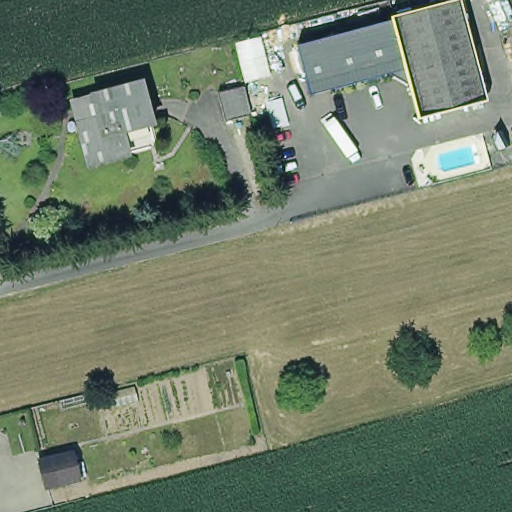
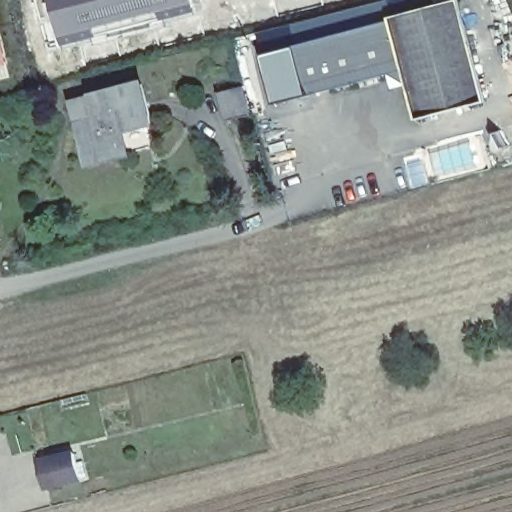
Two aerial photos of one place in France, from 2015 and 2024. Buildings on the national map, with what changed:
new [(198,9),(97,38),(63,45),(49,13),(45,0),(196,0),(198,9)]
unchanged [(411,65),(398,15),(456,0),(462,0),(488,95),(424,112),(411,65)]
unchanged [(411,65),(314,91),(300,41),(398,15),(411,65)]
new [(9,65),(0,67),(0,30),(9,65)]
unchanged [(144,86),(154,125),(124,133),(130,155),(87,164),(73,104),(144,86)]
unchanged [(243,92),(251,120),(225,126),(219,97),(243,92)]
unchanged [(46,481),(41,455),(74,446),(82,472),(46,481)]

